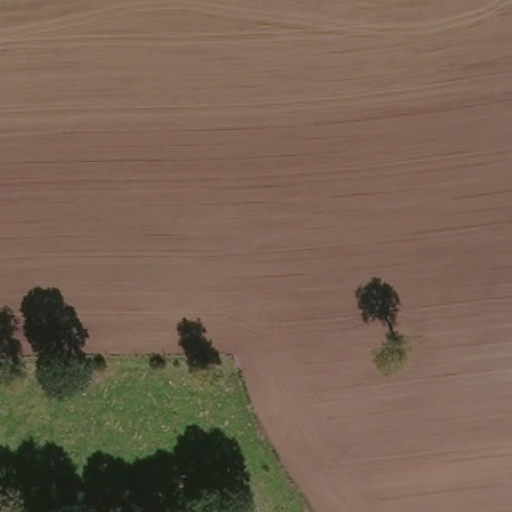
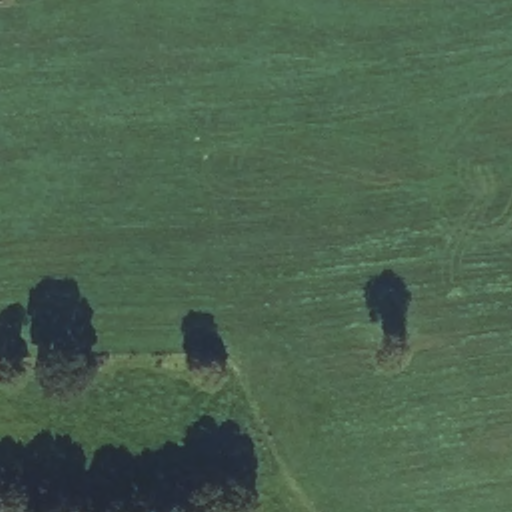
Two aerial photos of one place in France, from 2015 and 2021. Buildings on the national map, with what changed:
[]

